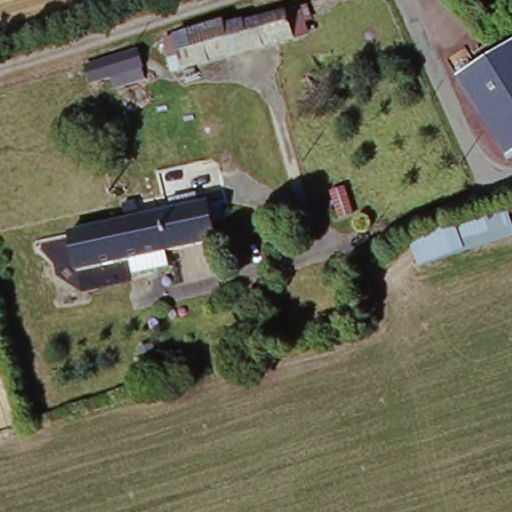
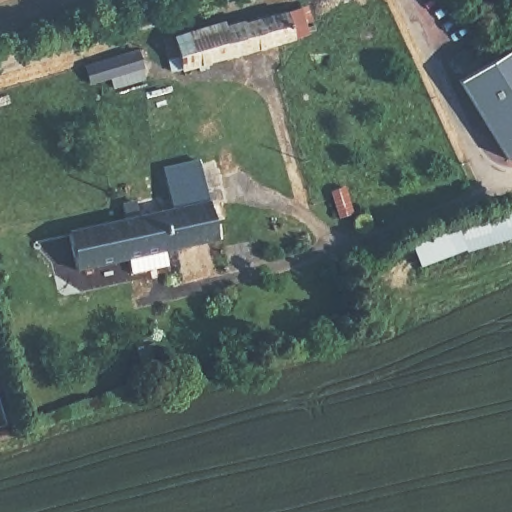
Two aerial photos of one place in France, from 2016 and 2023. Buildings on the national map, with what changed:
unchanged [(246,31),(268,22),(270,27),(308,15),(316,37),(197,74),(188,46),(246,26),(246,31)]
unchanged [(463,76),(512,53),(512,156),(507,158),(463,76)]
unchanged [(128,59),(138,56),(144,73),(133,74),(91,87),(85,72),(128,59)]
unchanged [(335,195),(349,190),(355,215),(341,218),(335,195)]
unchanged [(128,227),(124,212),(160,206),(160,197),(169,195),(170,204),(196,196),(200,208),(211,206),(220,243),(166,256),(168,271),(136,279),(133,263),(130,264),(120,227),(128,227)]
unchanged [(412,244),(507,212),(512,224),(512,245),(423,272),(412,244)]
unchanged [(130,264),(127,265),(81,276),(71,238),(120,227),(130,264)]

